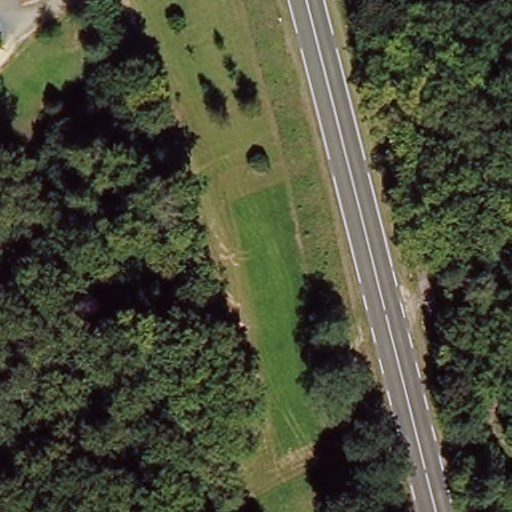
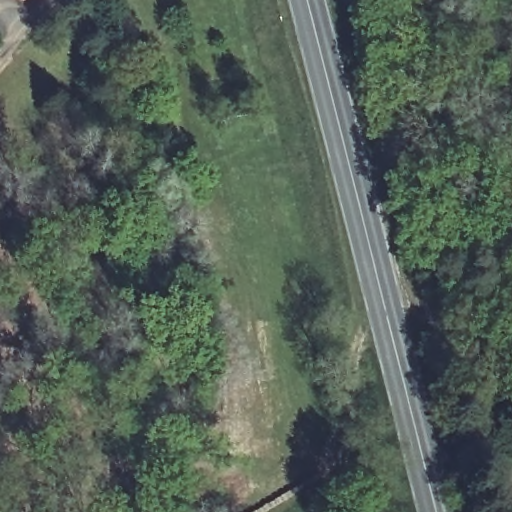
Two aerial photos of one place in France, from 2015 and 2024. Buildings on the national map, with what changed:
unchanged [(28,0),(38,0),(30,4),(28,0)]

